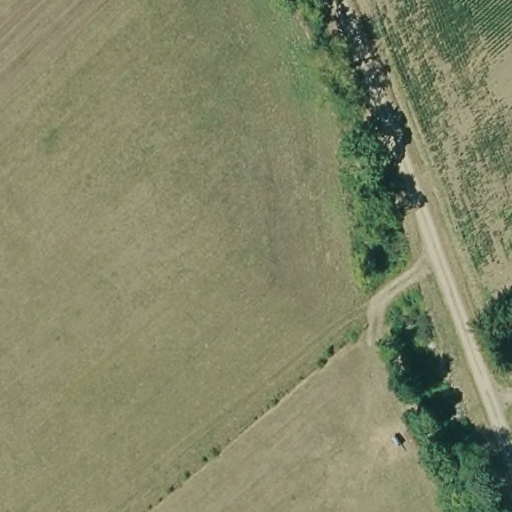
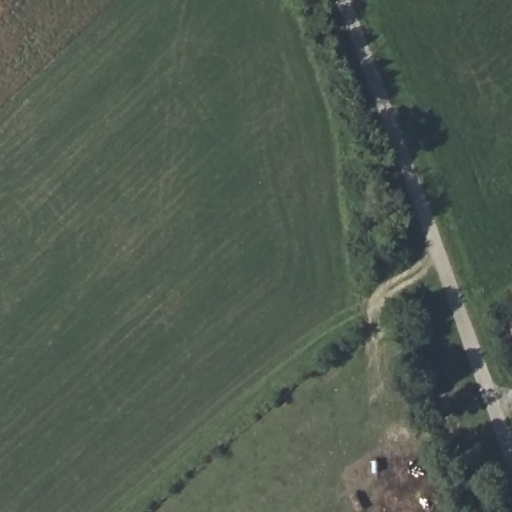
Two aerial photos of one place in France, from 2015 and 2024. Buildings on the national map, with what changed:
unchanged [(501,308),(512,303),(512,339),(511,339),(501,308)]

